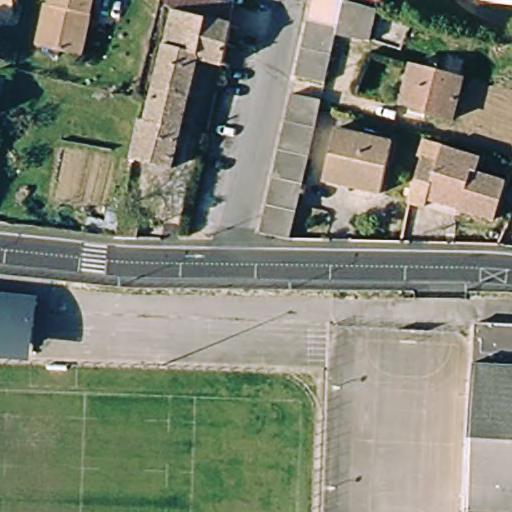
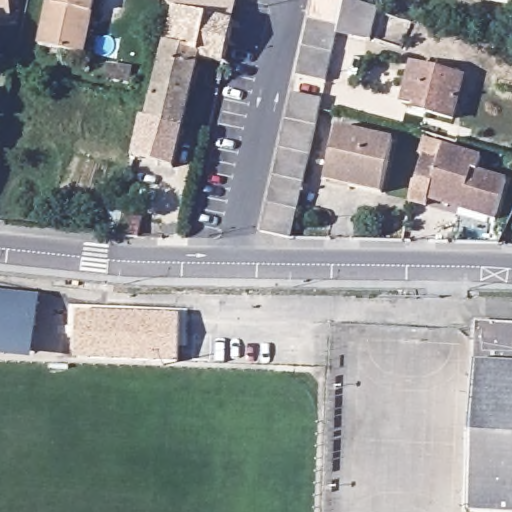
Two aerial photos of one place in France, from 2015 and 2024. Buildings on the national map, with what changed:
unchanged [(10,0),(11,6),(12,17),(0,18),(0,0),(10,0)]
unchanged [(42,41),(51,3),(54,4),(55,0),(97,0),(94,12),(85,51),(74,49),(42,41)]
unchanged [(224,67),(198,61),(199,56),(166,49),(175,8),(169,2),(169,0),(226,0),(238,2),(224,67)]
unchanged [(344,0),(338,29),(326,83),(298,76),(315,0),(344,0)]
unchanged [(338,29),(344,0),(349,0),(380,7),(372,38),(338,29)]
unchanged [(512,0),(512,3),(493,0),(512,0)]
unchanged [(199,56),(198,61),(182,129),(149,121),(166,49),(199,56)]
unchanged [(415,105),(404,101),(414,65),(464,79),(452,120),(427,113),(414,110),(415,105)]
unchanged [(262,234),(294,94),(323,100),(321,110),(318,124),(301,200),(292,240),(262,234)]
unchanged [(149,121),(182,129),(172,170),(133,160),(143,120),(149,121)]
unchanged [(329,165),(337,128),(353,131),(394,140),(382,192),(351,185),(326,180),(329,165)]
unchanged [(429,186),(414,182),(420,154),(436,159),(440,144),(479,155),(475,170),(505,178),(494,216),(459,206),(425,197),(429,186)]
unchanged [(116,236),(116,235),(122,207),(142,212),(137,239),(116,236)]
unchanged [(37,295),(36,325),(0,324),(0,292),(37,295)]
new [(180,316),(179,363),(76,361),(77,313),(180,316)]
unchanged [(478,361),(479,323),(512,323),(512,512),(474,512),(478,361)]
unchanged [(36,325),(33,352),(0,349),(0,324),(36,325)]

